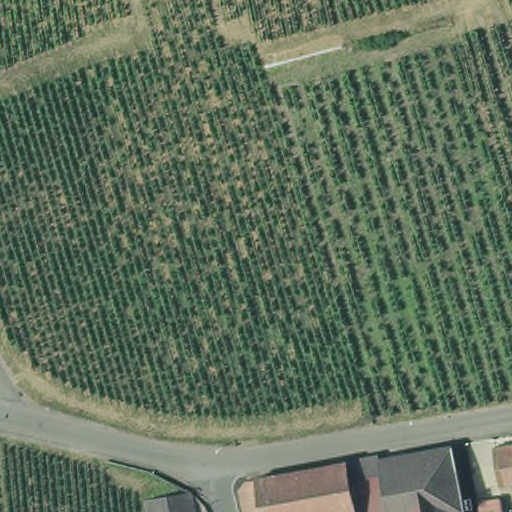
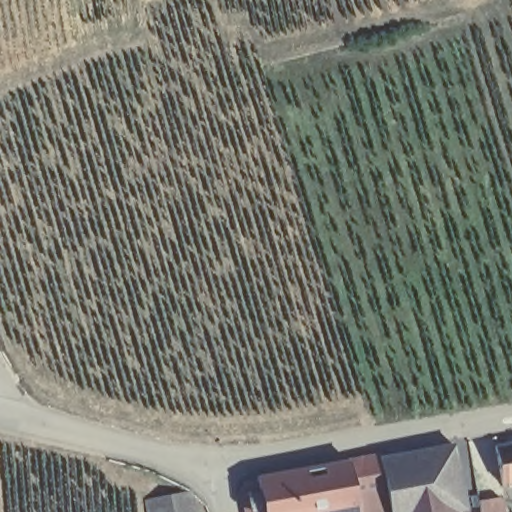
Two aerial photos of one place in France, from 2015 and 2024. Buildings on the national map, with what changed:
unchanged [(502,478),(495,440),(512,437),(512,476),(502,478)]
unchanged [(471,512),(247,512),(241,478),(350,449),(351,457),(457,438),(471,512)]
unchanged [(190,512),(143,512),(140,499),(183,490),(186,492),(190,512)]
unchanged [(478,499),(493,497),(496,512),(481,512),(478,499)]

